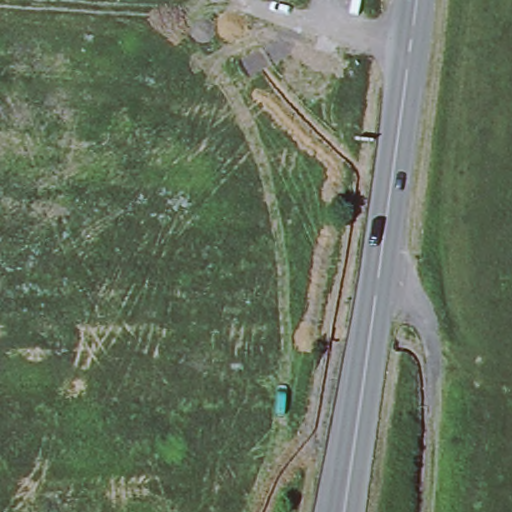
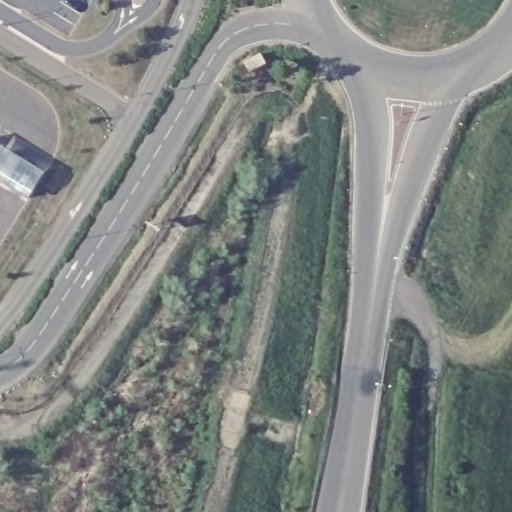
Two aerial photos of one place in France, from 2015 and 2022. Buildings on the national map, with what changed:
new [(47,175),(30,202),(0,185),(0,146),(47,175)]

